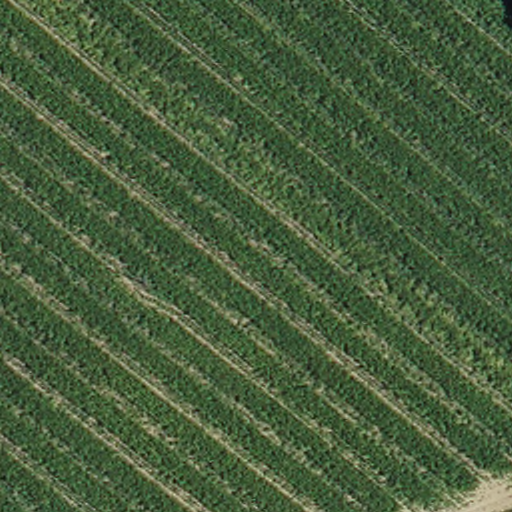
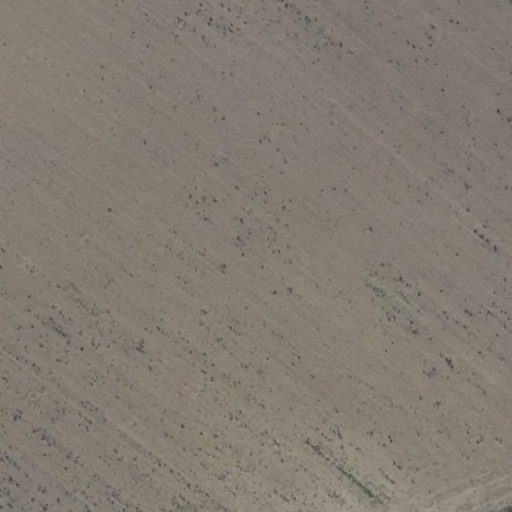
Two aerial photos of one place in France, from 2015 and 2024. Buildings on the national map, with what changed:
[]

